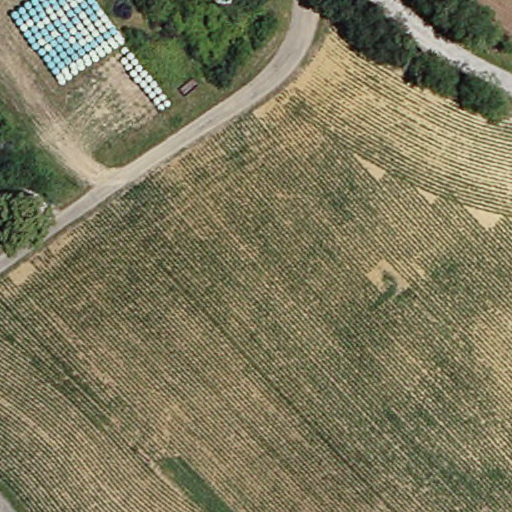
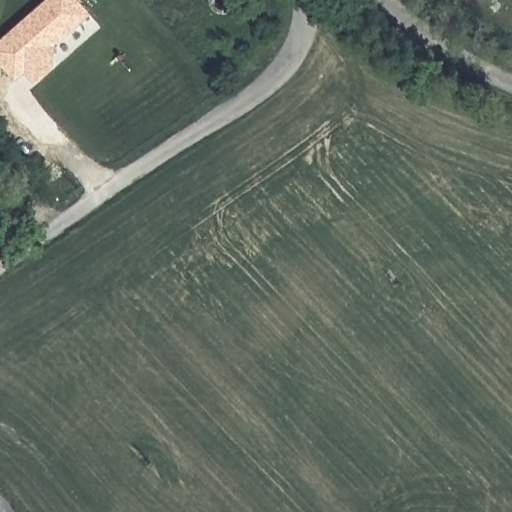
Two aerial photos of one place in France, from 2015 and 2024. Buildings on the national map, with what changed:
new [(58,43),(56,65),(34,83),(25,71),(16,80),(0,62),(0,39),(44,0),(80,0),(91,14),(58,43)]

